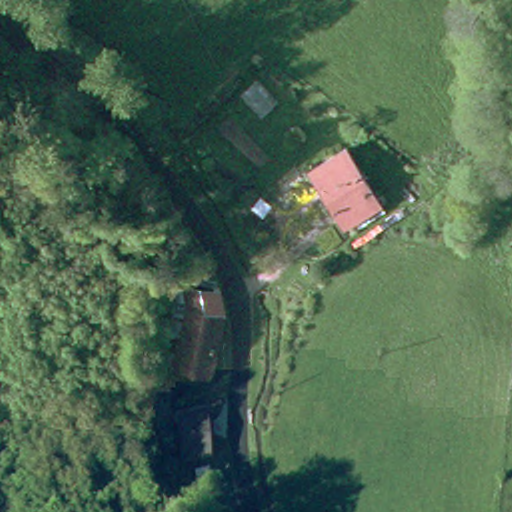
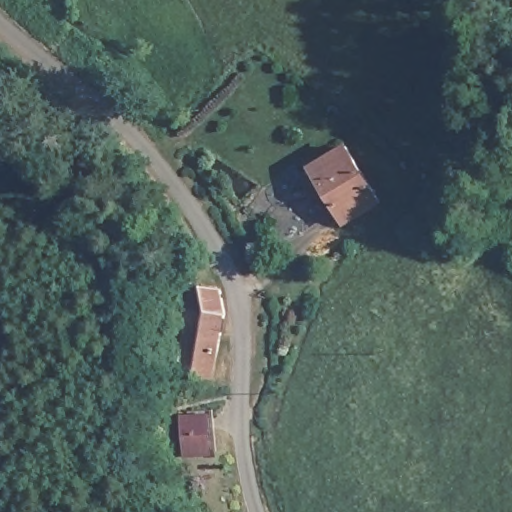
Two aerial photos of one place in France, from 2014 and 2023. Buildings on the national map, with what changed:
unchanged [(384,189),(358,221),(308,179),(335,147),(384,189)]
unchanged [(212,383),(177,377),(191,310),(187,291),(217,297),(222,297),(225,323),(221,342),(212,383)]
unchanged [(190,463),(185,426),(208,423),(214,459),(190,463)]

